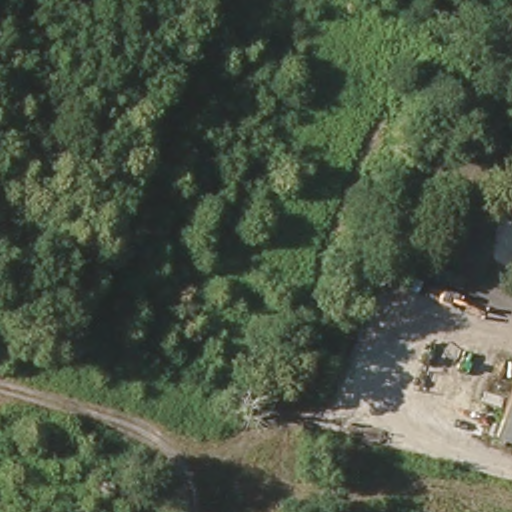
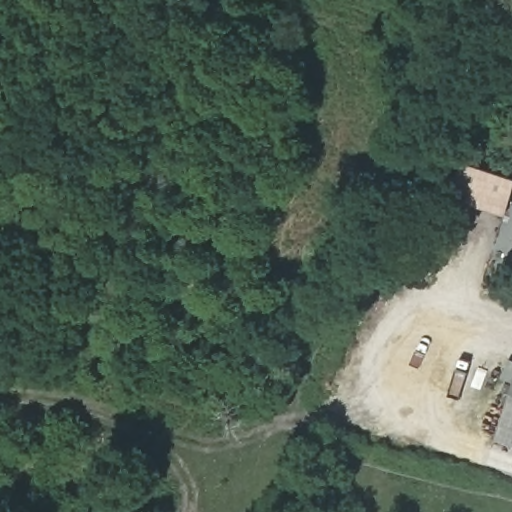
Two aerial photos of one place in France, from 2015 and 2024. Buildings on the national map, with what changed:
new [(512,177),(512,200),(506,217),(454,200),(466,163),(512,177)]
unchanged [(512,399),(512,444),(496,439),(512,399)]

